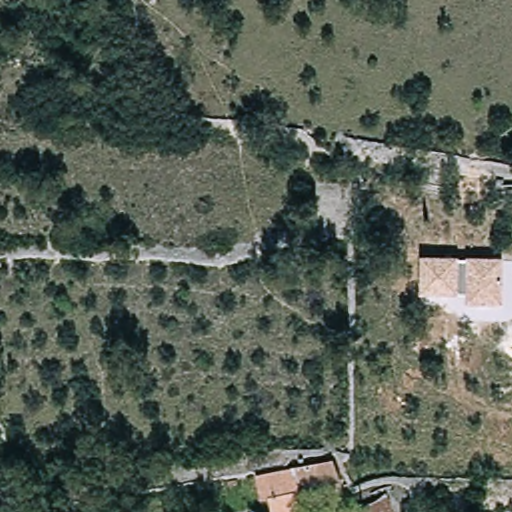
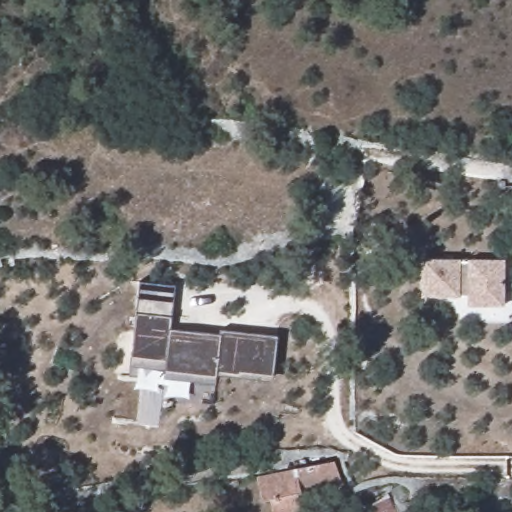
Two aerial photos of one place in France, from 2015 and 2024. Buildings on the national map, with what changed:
unchanged [(503,306),(466,307),(466,298),(419,297),(422,258),(504,259),(503,306)]
new [(135,313),(138,283),(173,287),(170,317),(169,331),(219,336),(220,332),(276,338),(271,382),(216,376),(215,386),(162,381),(163,370),(129,366),(135,313)]
unchanged [(339,461),(341,480),(301,487),(305,512),(281,512),(279,497),(269,497),(264,473),(339,461)]

